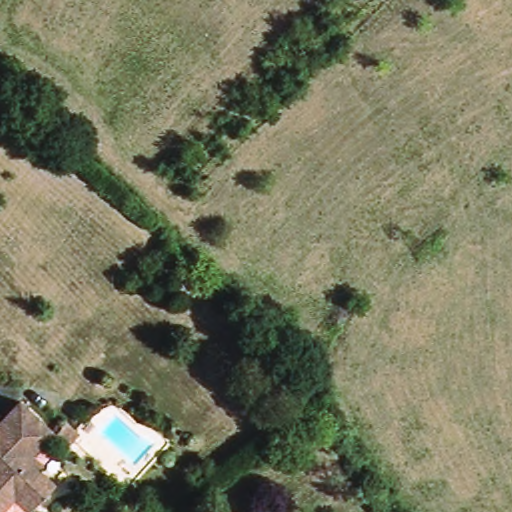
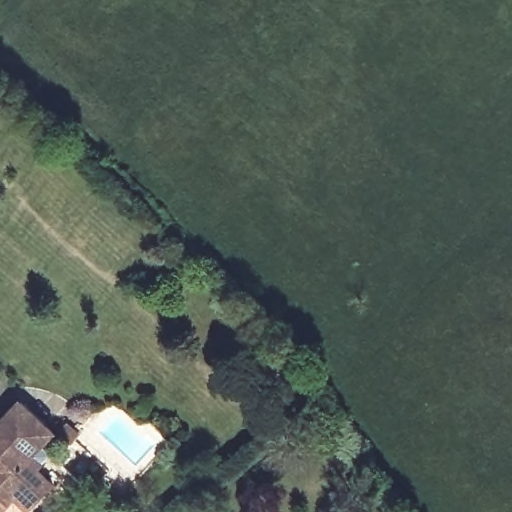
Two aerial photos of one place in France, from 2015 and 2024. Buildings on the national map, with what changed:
unchanged [(49,494),(29,512),(16,512),(10,504),(0,512),(0,428),(20,408),(51,440),(38,454),(35,449),(25,459),(38,473),(35,479),(49,494)]
unchanged [(63,460),(50,449),(57,440),(70,451),(63,460)]

